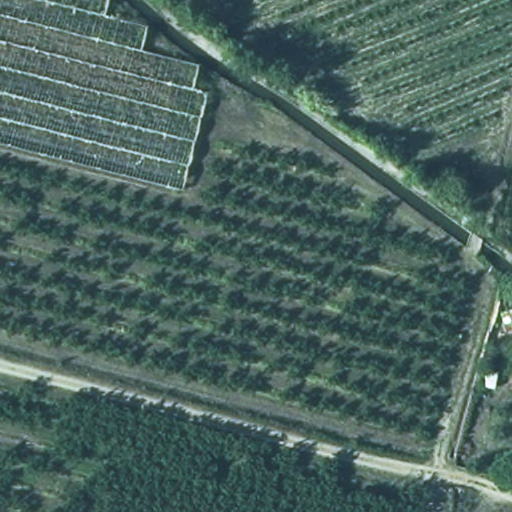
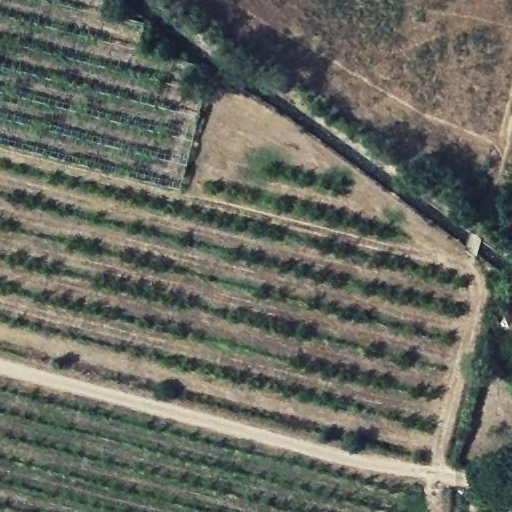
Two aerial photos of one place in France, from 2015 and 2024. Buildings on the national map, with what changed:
unchanged [(0,143),(0,0),(103,0),(100,16),(141,23),(135,49),(189,64),(185,81),(204,89),(179,188),(0,143)]
unchanged [(512,310),(512,330),(508,331),(500,314),(512,310)]

